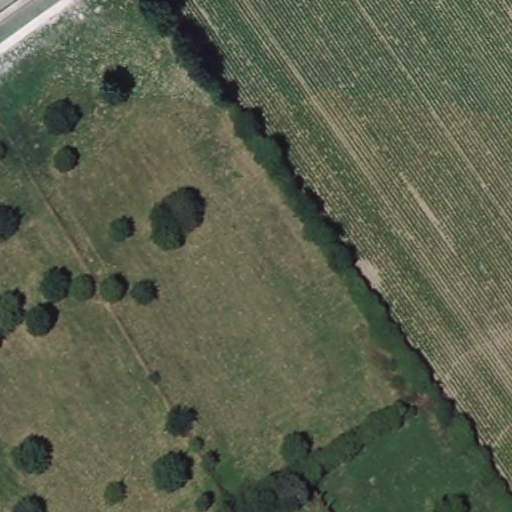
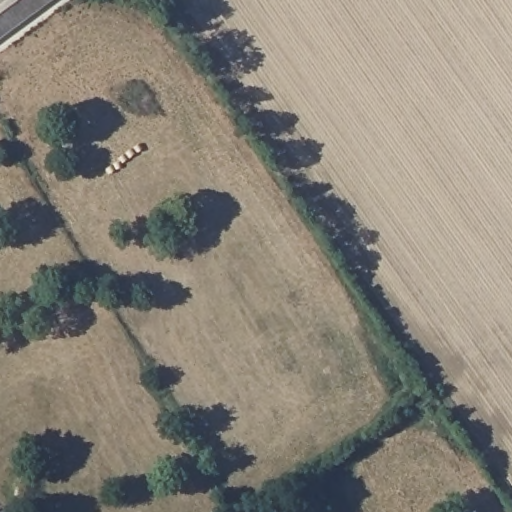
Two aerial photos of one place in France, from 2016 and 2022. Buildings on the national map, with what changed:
unchanged [(0,36),(0,0),(49,0),(0,36)]

